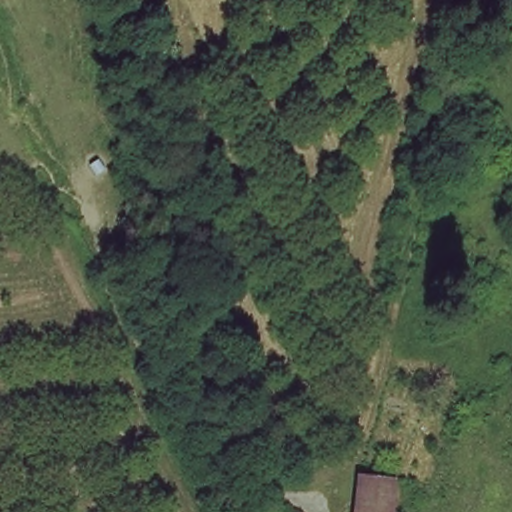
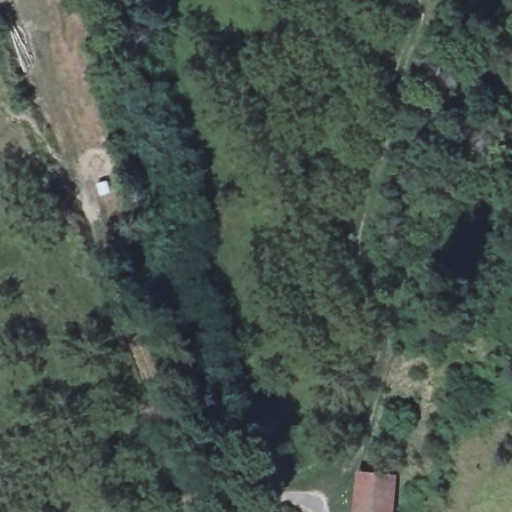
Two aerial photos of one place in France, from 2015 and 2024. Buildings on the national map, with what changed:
unchanged [(387,512),(350,512),(363,465),(397,474),(387,512)]

